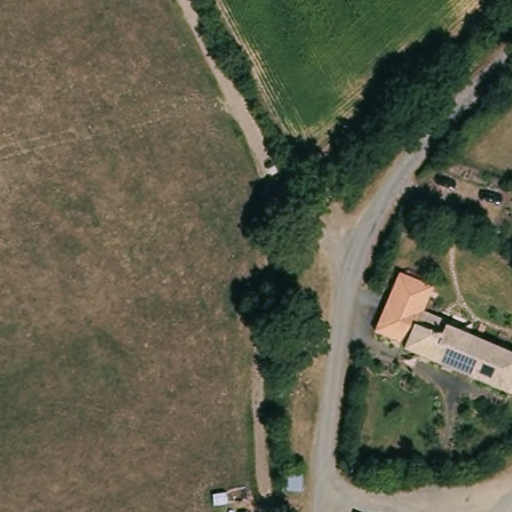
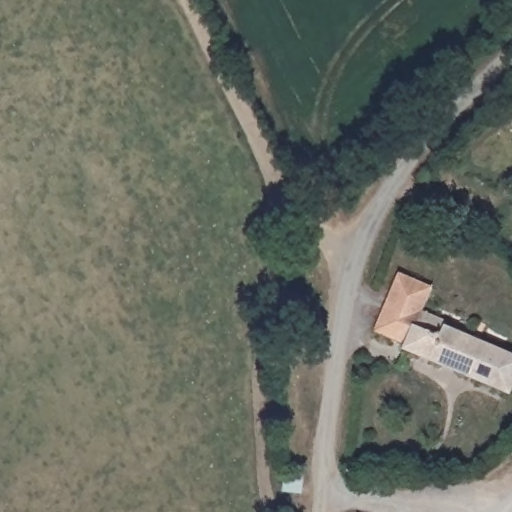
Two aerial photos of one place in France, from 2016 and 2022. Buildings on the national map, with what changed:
unchanged [(372,340),(400,274),(437,290),(426,316),(512,352),(512,398),(372,340)]
unchanged [(305,474),(303,492),(286,490),(287,472),(305,474)]

